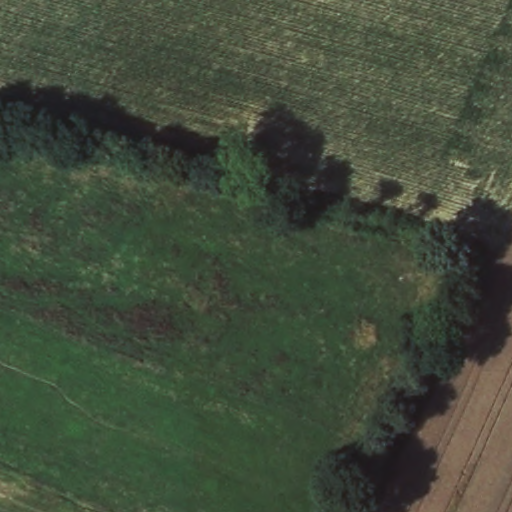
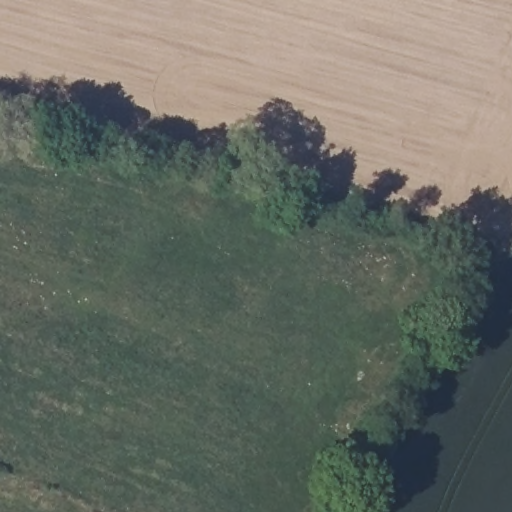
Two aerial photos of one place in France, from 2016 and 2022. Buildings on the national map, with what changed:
[]

